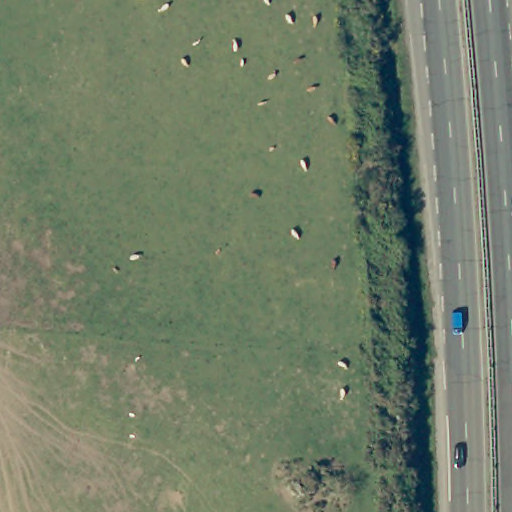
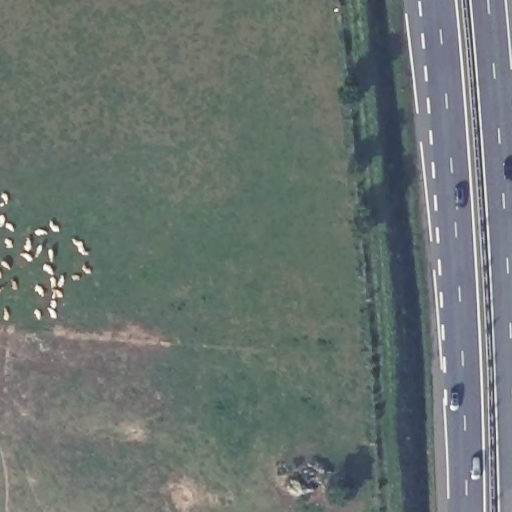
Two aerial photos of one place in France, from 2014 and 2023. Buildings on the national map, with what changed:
[]

